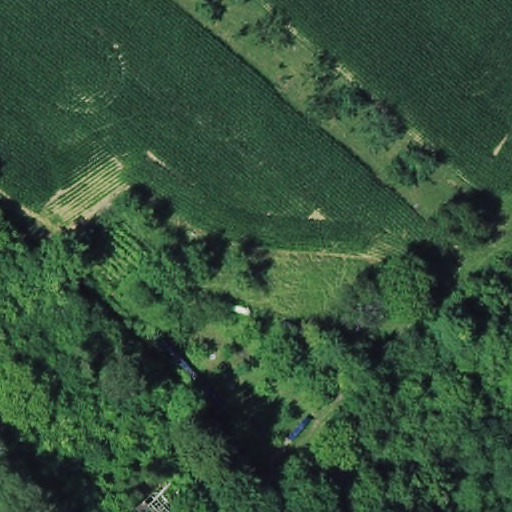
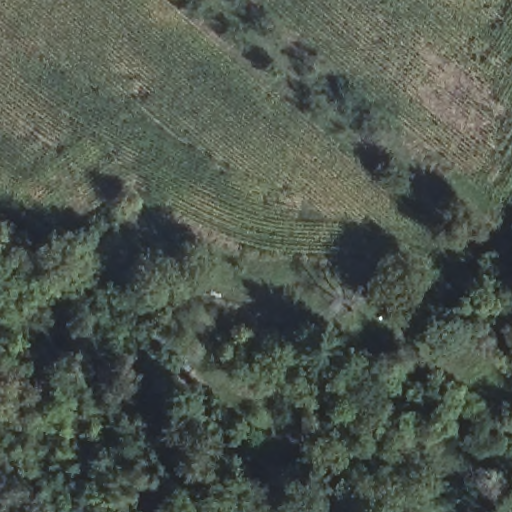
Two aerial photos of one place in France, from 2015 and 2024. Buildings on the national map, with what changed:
unchanged [(144,503),(144,496),(151,490),(159,490),(168,481),(183,496),(166,512),(135,512),(134,511),(144,503)]

